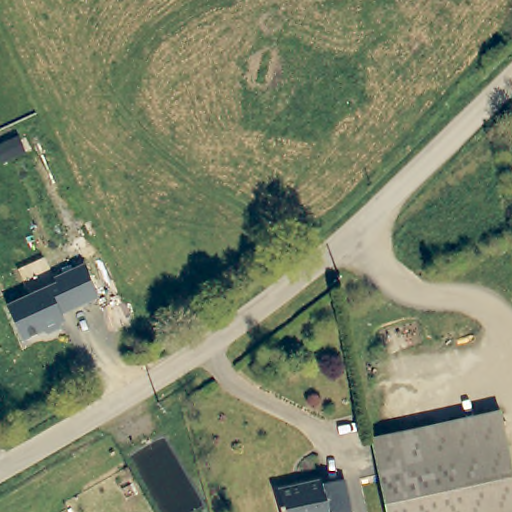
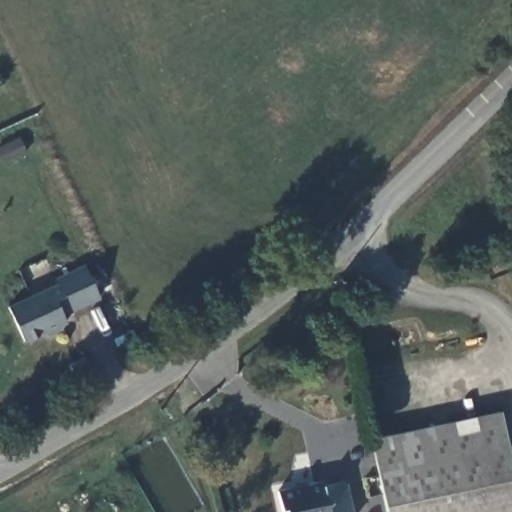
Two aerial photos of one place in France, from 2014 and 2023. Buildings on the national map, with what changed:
unchanged [(55,278),(53,273),(82,260),(96,292),(67,306),(66,303),(58,307),(63,317),(60,318),(58,323),(45,329),(40,327),(21,336),(5,301),(55,278)]
unchanged [(512,491),(512,512),(384,512),(367,441),(494,413),(512,491)]
unchanged [(272,492),(318,481),(319,487),(339,482),(346,512),(277,512),(272,492)]

